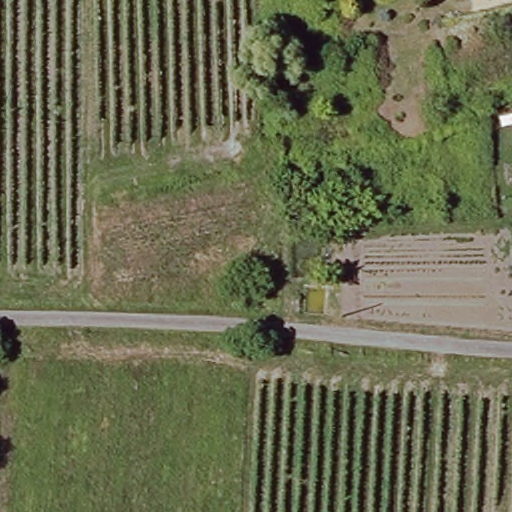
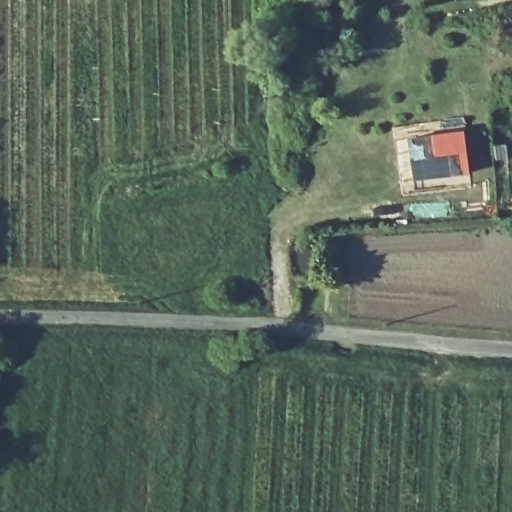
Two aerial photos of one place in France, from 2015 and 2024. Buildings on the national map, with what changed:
unchanged [(449,0),(455,0),(449,2),(449,0)]
new [(410,137),(465,130),(471,174),(415,182),(410,137)]

